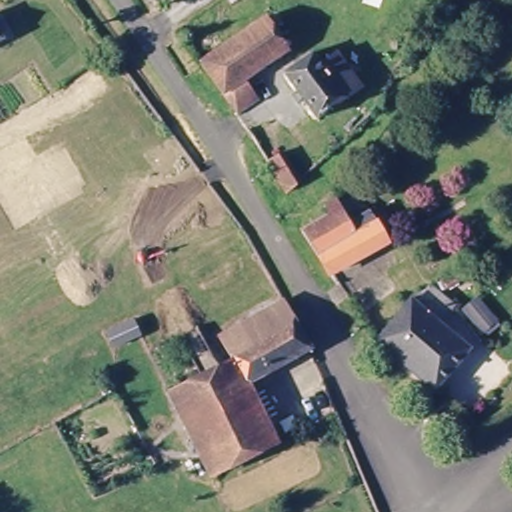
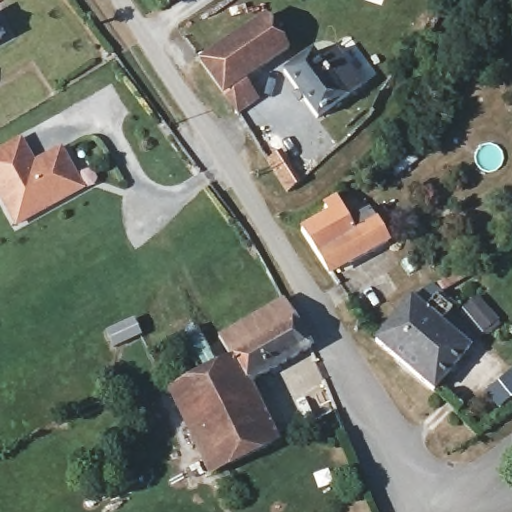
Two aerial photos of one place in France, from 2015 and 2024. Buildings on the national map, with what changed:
unchanged [(263,24),(275,43),(285,60),(220,103),(196,70),(263,24)]
unchanged [(0,46),(0,44),(1,45),(0,46)]
unchanged [(287,80),(318,60),(326,69),(339,62),(363,100),(319,128),(287,80)]
new [(14,228),(0,202),(0,149),(21,137),(32,160),(61,147),(84,190),(14,228)]
new [(411,148),(420,161),(395,177),(387,164),(411,148)]
unchanged [(285,190),(265,161),(276,150),(296,181),(285,190)]
unchanged [(347,227),(367,217),(387,252),(328,282),(300,241),(326,226),(323,218),(336,204),(347,227)]
unchanged [(410,304),(430,292),(453,309),(438,328),(465,353),(432,395),(373,347),(410,304)]
unchanged [(200,378),(181,340),(200,329),(217,367),(232,360),(220,339),(286,304),(313,352),(252,388),(281,445),(214,481),(172,395),(200,378)]
new [(131,322),(138,339),(111,351),(104,335),(131,322)]
new [(510,373),(512,376),(512,397),(499,408),(486,393),(510,373)]

